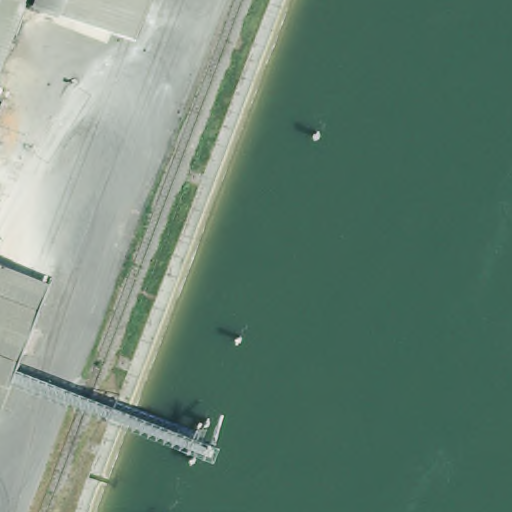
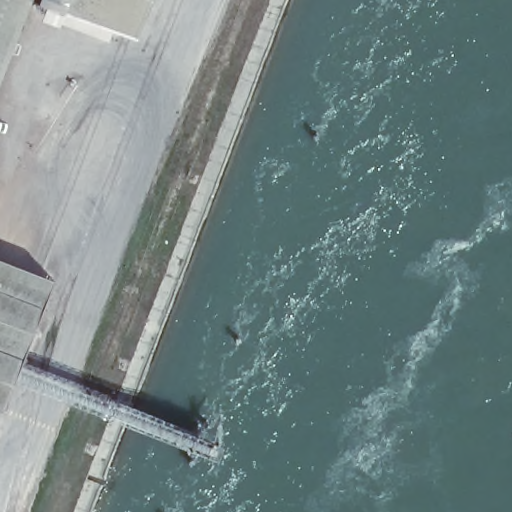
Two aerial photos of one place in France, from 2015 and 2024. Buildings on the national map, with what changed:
unchanged [(0,53),(0,0),(20,0),(0,53)]
unchanged [(113,32),(32,0),(126,0),(113,32)]
unchanged [(136,41),(113,32),(126,0),(152,0),(136,41)]
unchanged [(49,277),(0,401),(0,258),(49,277)]

